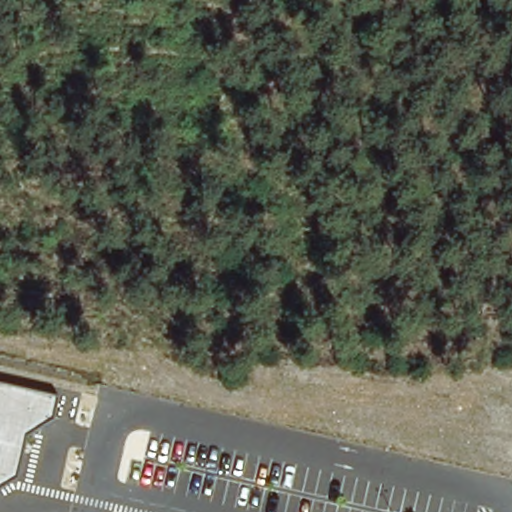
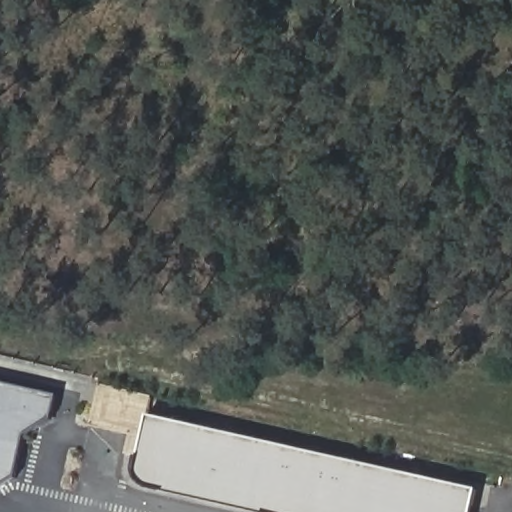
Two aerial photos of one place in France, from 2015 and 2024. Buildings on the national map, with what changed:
unchanged [(59,397),(53,417),(27,432),(19,476),(0,487),(0,384),(59,397)]
new [(473,487),(471,512),(255,512),(145,487),(137,481),(133,467),(135,450),(146,413),(473,487)]

